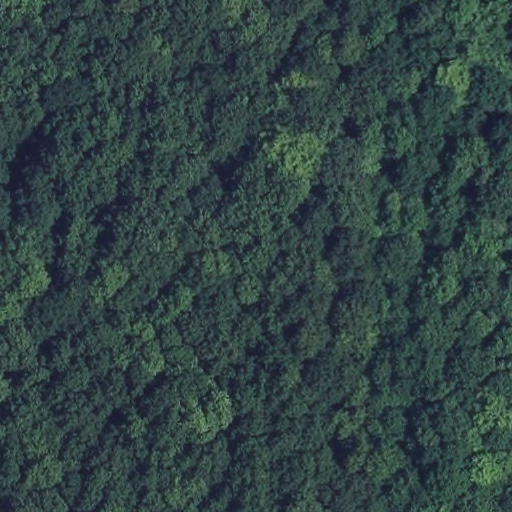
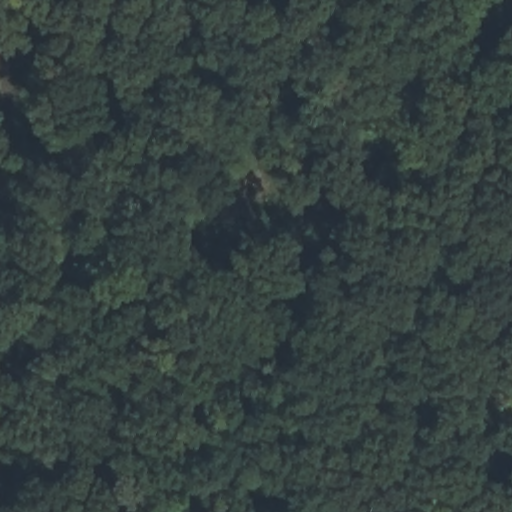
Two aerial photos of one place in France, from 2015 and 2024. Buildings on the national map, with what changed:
[]

